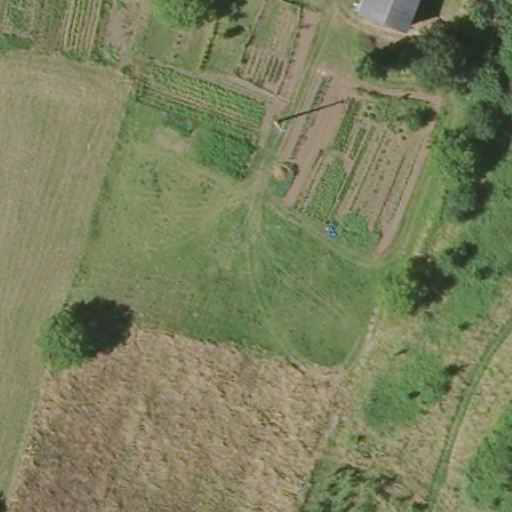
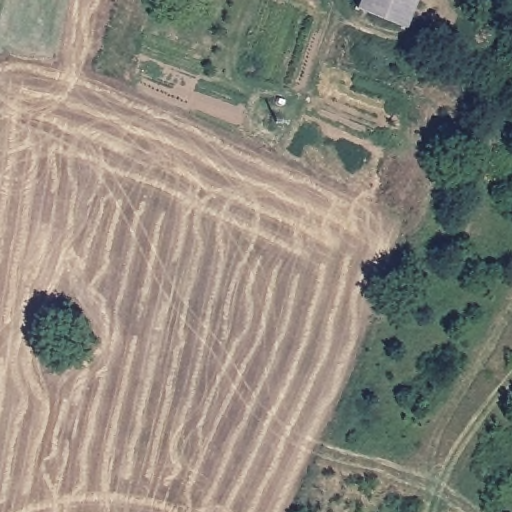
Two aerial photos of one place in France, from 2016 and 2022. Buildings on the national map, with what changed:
unchanged [(356,9),(360,0),(414,0),(403,28),(356,9)]

